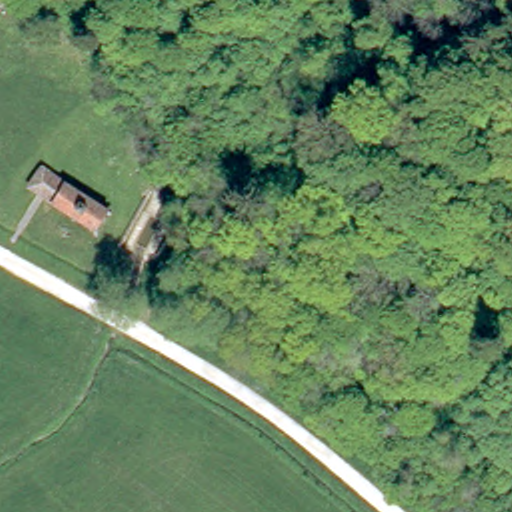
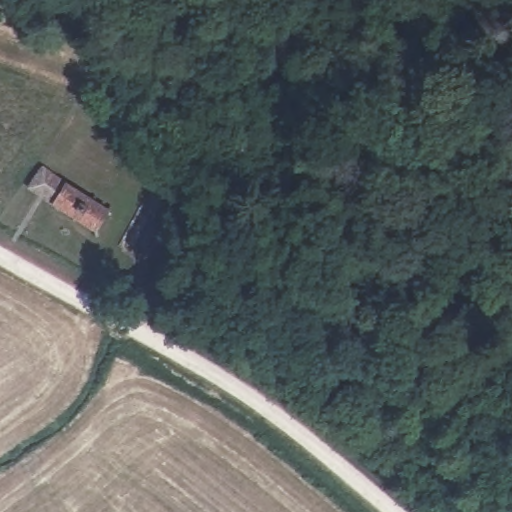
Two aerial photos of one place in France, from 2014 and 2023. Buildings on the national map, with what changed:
unchanged [(87,228),(69,216),(51,206),(29,193),(44,170),(56,178),(67,184),(110,210),(95,234),(87,228)]

